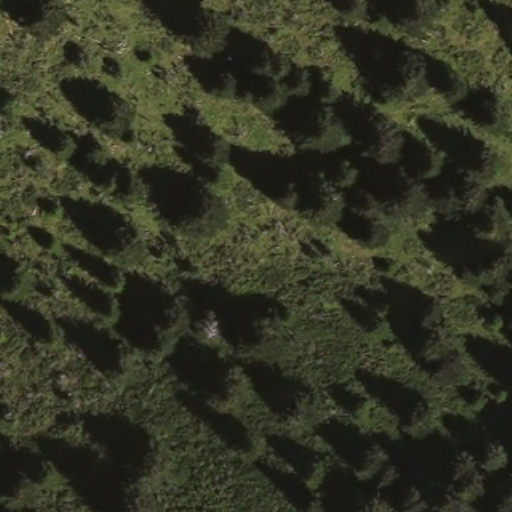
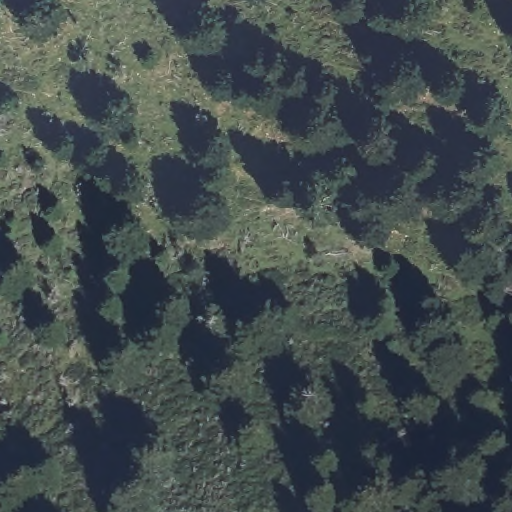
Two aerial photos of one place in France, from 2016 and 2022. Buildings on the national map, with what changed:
unchanged [(503,375),(512,372),(512,398),(487,406),(479,384),(503,375)]

